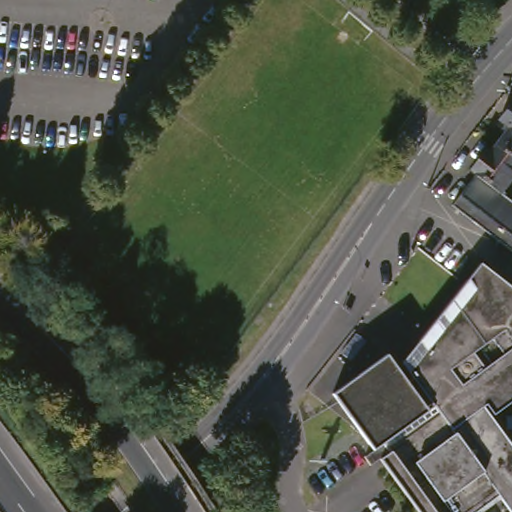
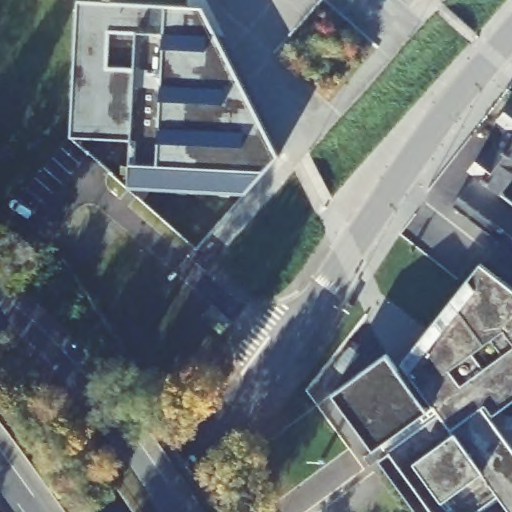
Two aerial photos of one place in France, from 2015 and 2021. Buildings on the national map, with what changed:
new [(75,4),(198,10),(265,162),(225,190),(117,187),(117,135),(56,131),(63,2),(75,4)]
unchanged [(512,110),(512,121),(507,117),(512,110)]
unchanged [(486,174),(474,165),(488,143),(501,154),(512,136),(512,185),(507,191),(512,195),(512,243),(463,207),(486,174)]
unchanged [(388,460),(394,456),(388,447),(379,454),(339,397),(393,358),(411,385),(419,380),(441,362),(426,342),(489,263),(512,282),(512,410),(508,413),(503,417),(512,431),(512,512),(425,512),(388,460)]

